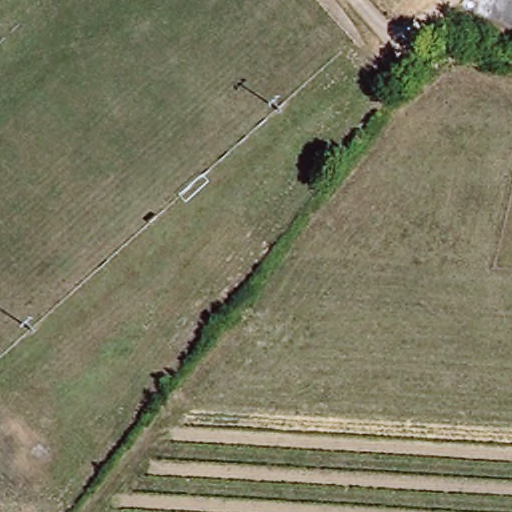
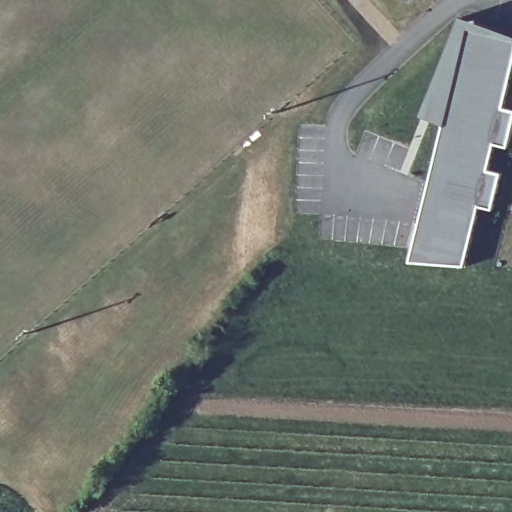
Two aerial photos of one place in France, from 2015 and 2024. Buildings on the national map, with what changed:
new [(409,262),(442,126),(420,118),(461,19),(512,38),(512,74),(502,110),(512,113),(512,128),(507,148),(493,145),(487,172),(500,176),(491,211),(478,208),(464,266),(409,262)]

